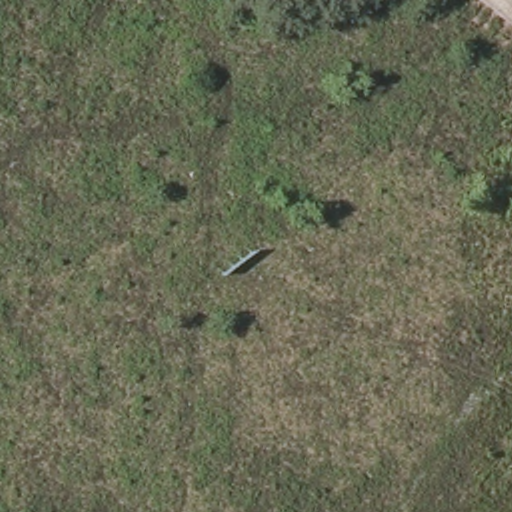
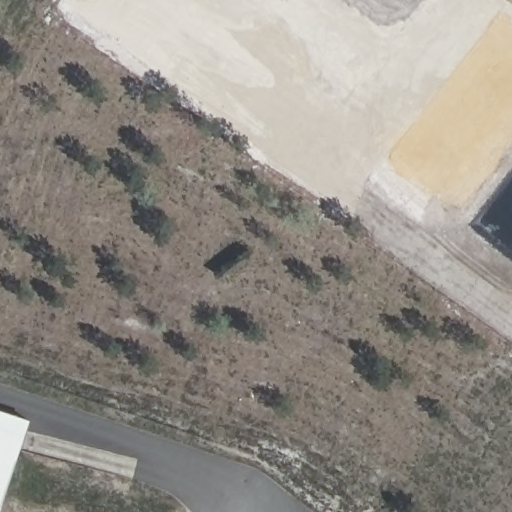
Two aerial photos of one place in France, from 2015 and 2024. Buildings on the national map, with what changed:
new [(2,512),(0,512),(0,409),(32,420),(2,512)]

